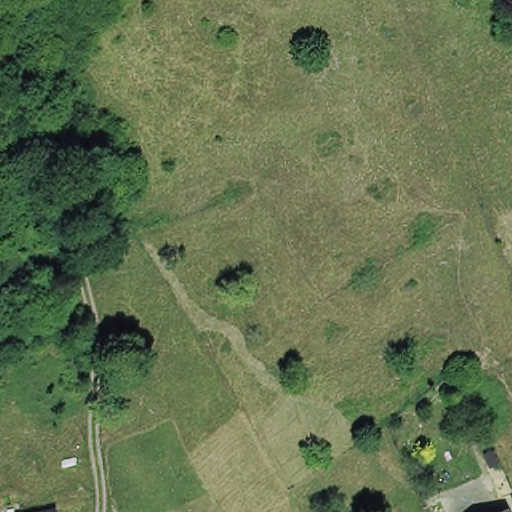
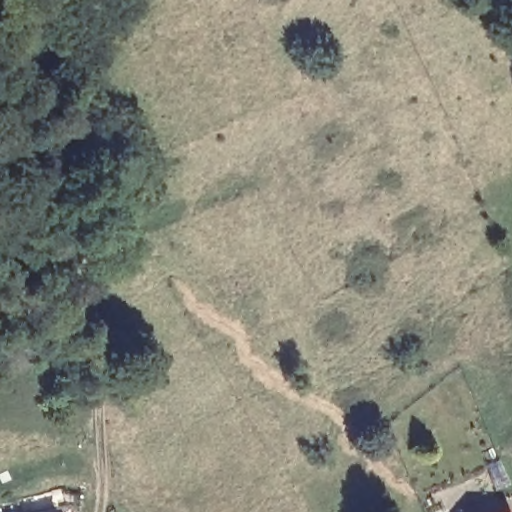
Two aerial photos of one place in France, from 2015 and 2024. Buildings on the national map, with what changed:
unchanged [(430,512),(429,508),(442,502),(447,512),(430,512)]

